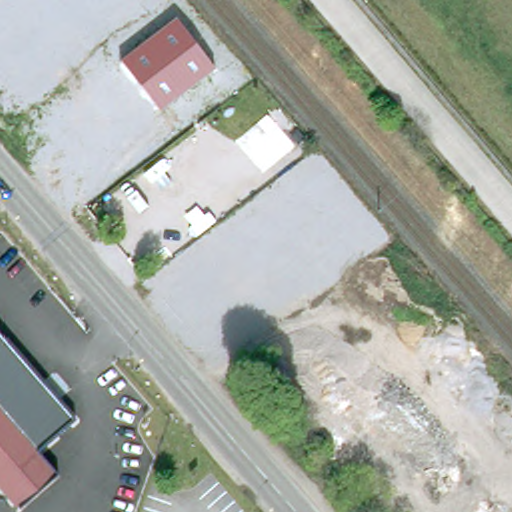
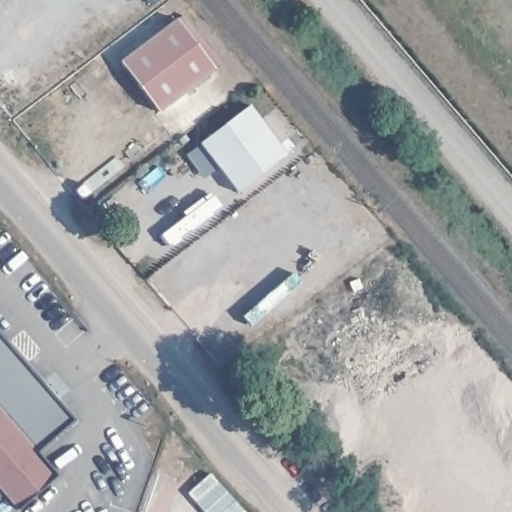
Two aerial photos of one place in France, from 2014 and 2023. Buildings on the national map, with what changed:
unchanged [(215,70),(160,109),(120,57),(175,19),(215,70)]
new [(200,142),(250,104),(285,156),(236,192),(218,167),(203,177),(187,153),(200,142)]
unchanged [(70,417),(33,452),(0,413),(0,393),(5,388),(0,383),(0,332),(70,417)]
unchanged [(5,388),(0,393),(0,383),(5,388)]
unchanged [(56,478),(17,512),(0,493),(0,413),(56,478)]

